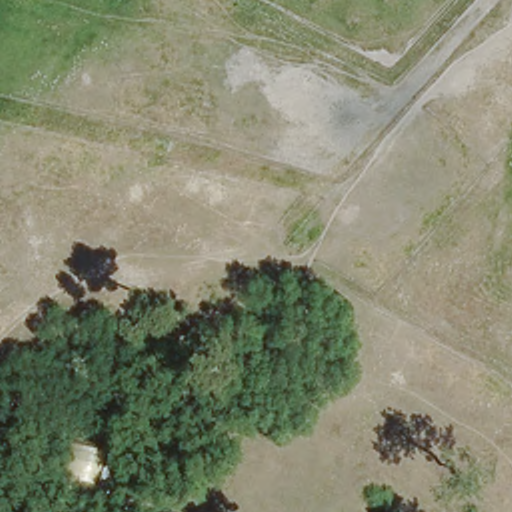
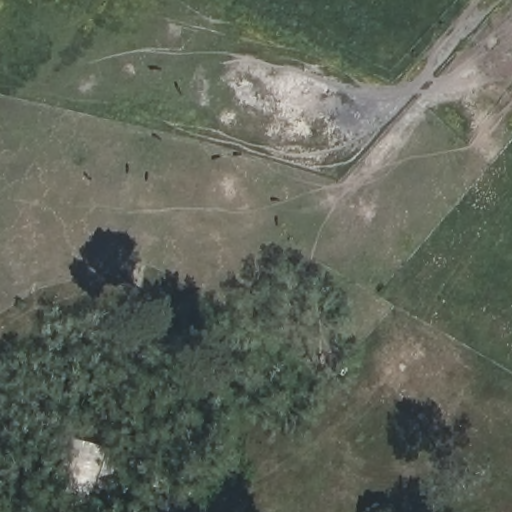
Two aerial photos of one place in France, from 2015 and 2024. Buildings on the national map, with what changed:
[]

